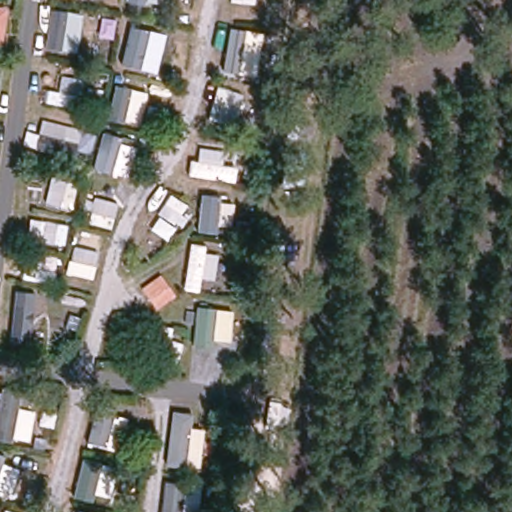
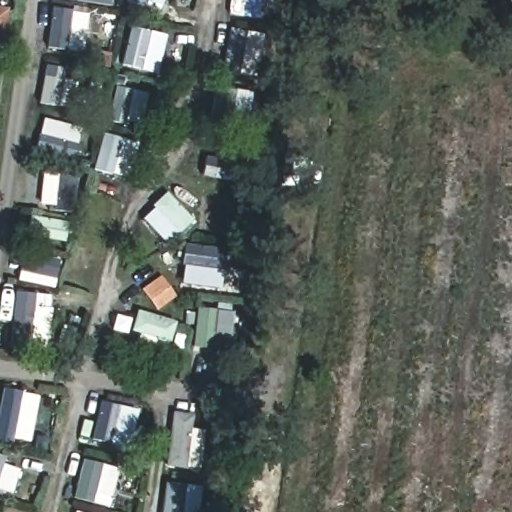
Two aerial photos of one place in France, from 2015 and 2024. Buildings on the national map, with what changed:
unchanged [(0,31),(0,8),(3,9),(0,31)]

